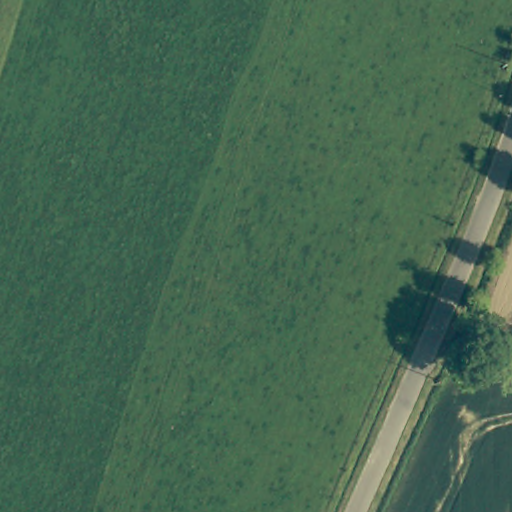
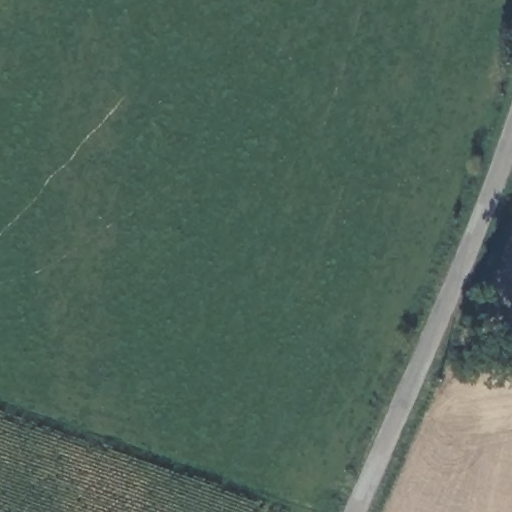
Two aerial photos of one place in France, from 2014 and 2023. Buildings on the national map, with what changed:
[]

